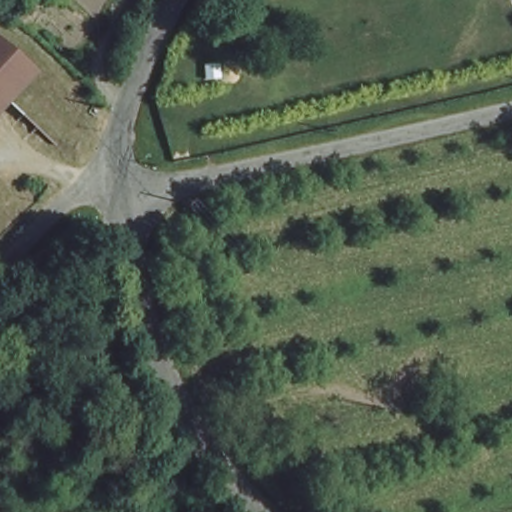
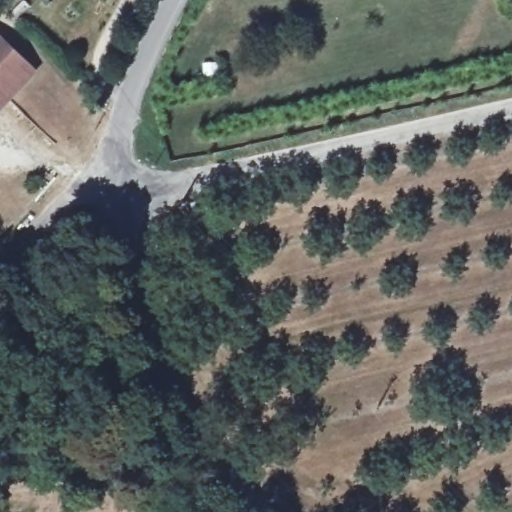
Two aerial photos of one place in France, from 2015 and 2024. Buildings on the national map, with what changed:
unchanged [(23,63),(0,87),(0,41),(9,50),(23,63)]
unchanged [(0,89),(5,94),(0,99),(0,89)]

